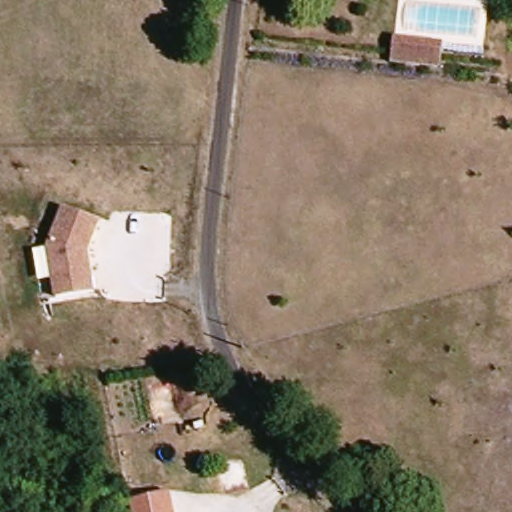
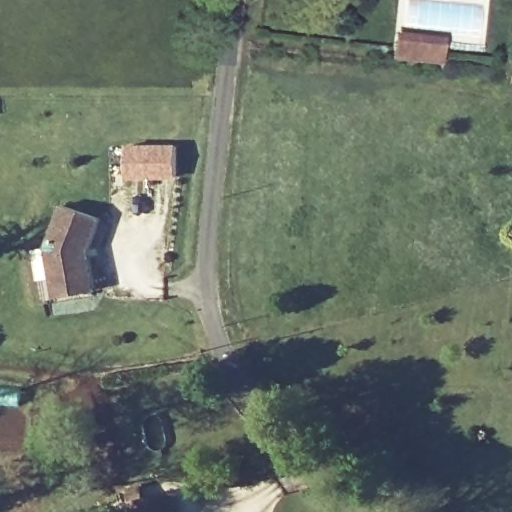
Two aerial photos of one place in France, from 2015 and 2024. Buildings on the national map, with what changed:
unchanged [(441,46),(439,68),(394,63),(396,40),(441,46)]
new [(124,143),(176,143),(176,180),(123,180),(124,143)]
unchanged [(86,250),(93,290),(41,298),(33,248),(48,246),(63,205),(98,217),(86,250)]
new [(131,512),(128,500),(170,491),(174,512),(131,512)]

